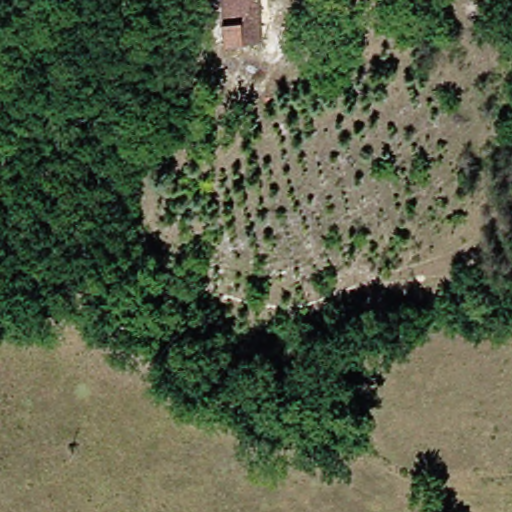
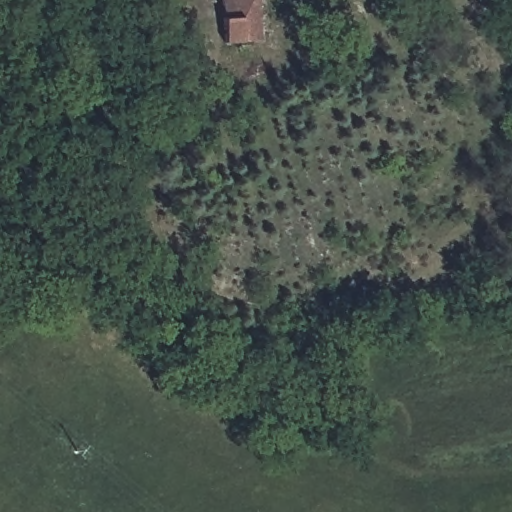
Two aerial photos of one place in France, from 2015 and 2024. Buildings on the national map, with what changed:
unchanged [(263,41),(226,44),(224,0),(260,0),(263,41)]

